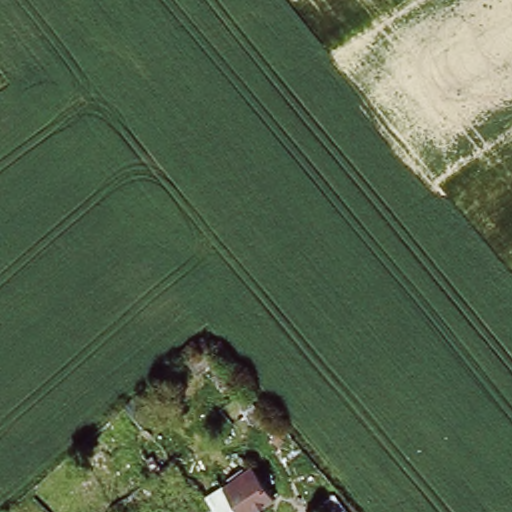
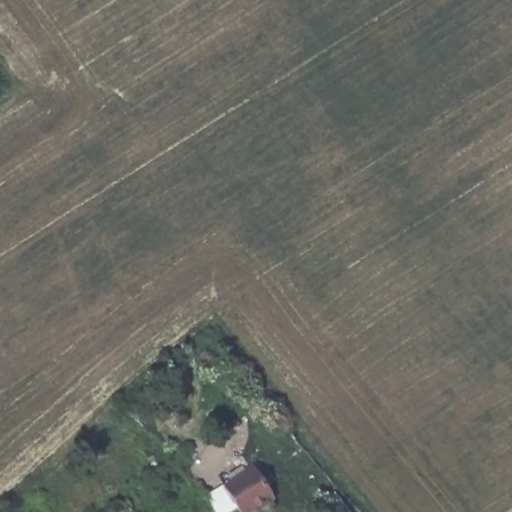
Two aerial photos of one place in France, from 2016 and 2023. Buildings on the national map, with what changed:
unchanged [(281,505),(269,512),(245,512),(233,491),(261,472),(281,505)]
unchanged [(217,487),(226,482),(235,496),(225,501),(217,487)]

